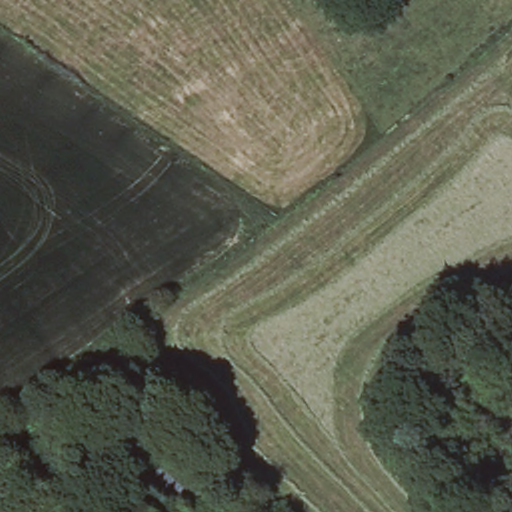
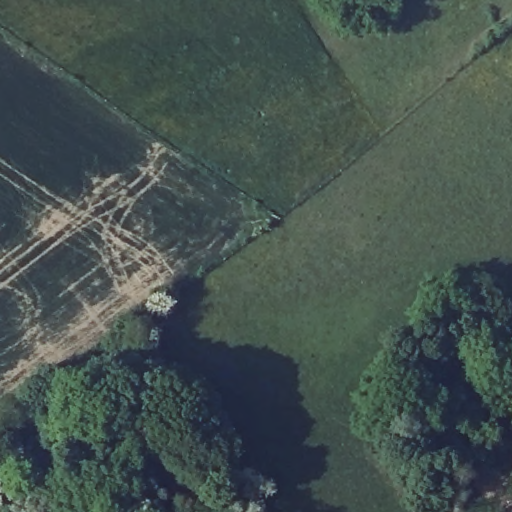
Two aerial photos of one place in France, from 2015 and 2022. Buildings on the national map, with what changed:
unchanged [(146,481),(175,452),(209,486),(195,496),(182,488),(171,501),(146,481)]

